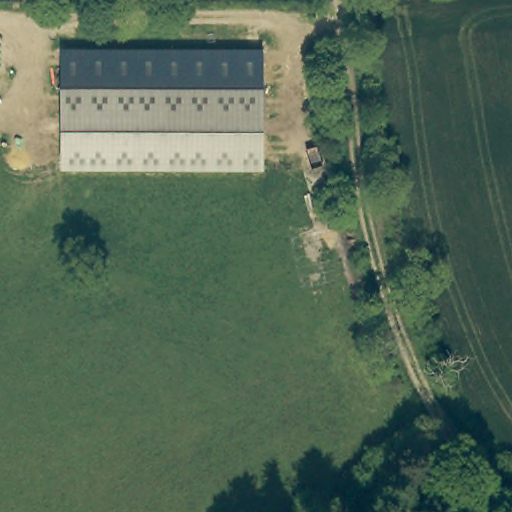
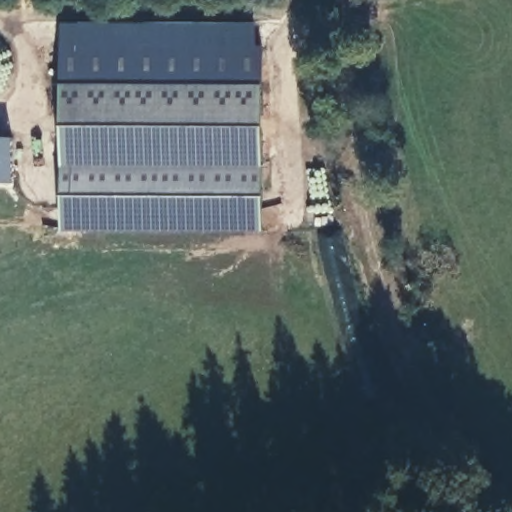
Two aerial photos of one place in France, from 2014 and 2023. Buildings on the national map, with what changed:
unchanged [(264,86),(263,169),(61,169),(60,84),(59,47),(262,48),(264,86)]
new [(263,169),(263,232),(60,232),(61,169),(263,169)]

